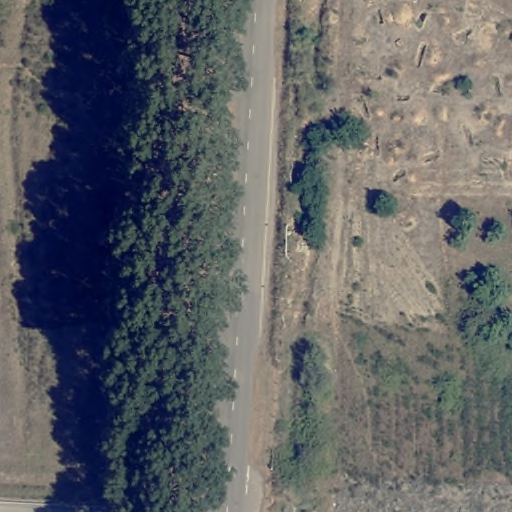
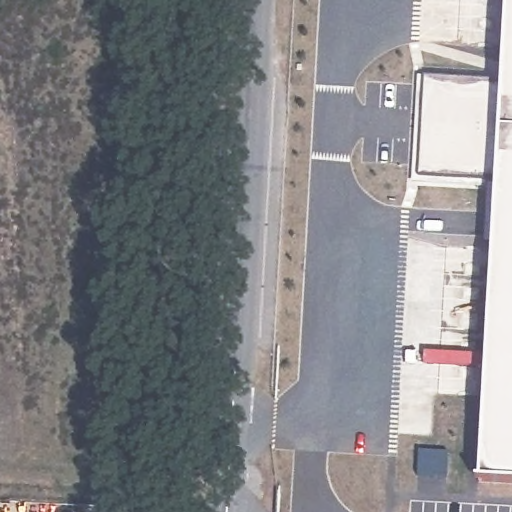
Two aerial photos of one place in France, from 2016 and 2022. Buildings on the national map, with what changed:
new [(494,181),(417,179),(424,78),(501,80),(505,0),(512,0),(512,483),(479,481),(494,181)]

